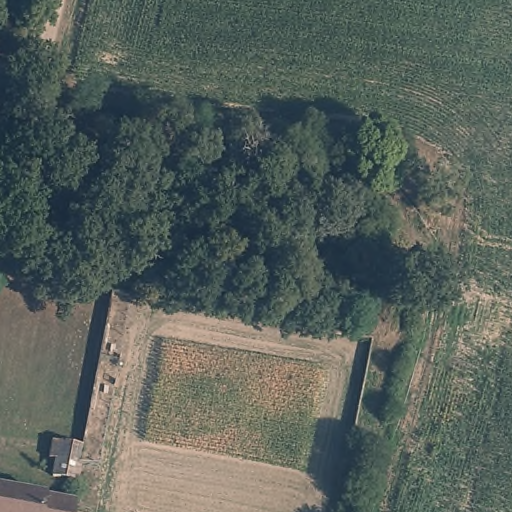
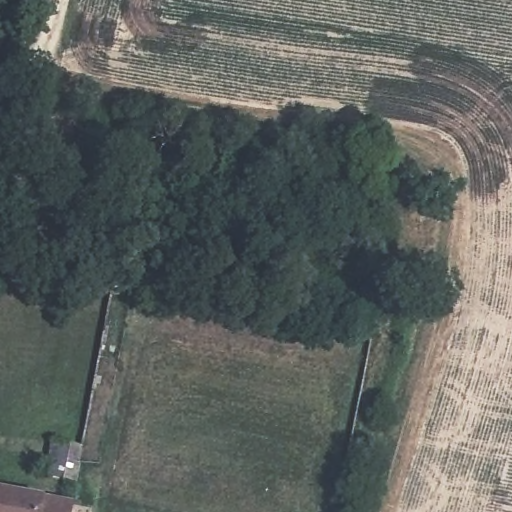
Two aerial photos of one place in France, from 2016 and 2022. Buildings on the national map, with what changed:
unchanged [(82,446),(77,481),(50,477),(52,462),(47,461),(49,442),(82,446)]
unchanged [(0,489),(77,502),(76,512),(0,512),(0,489)]

